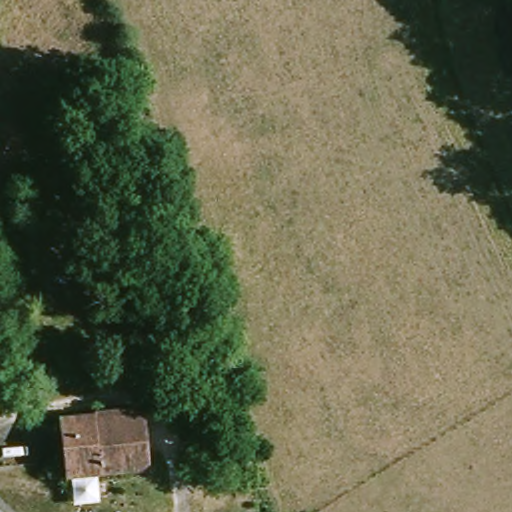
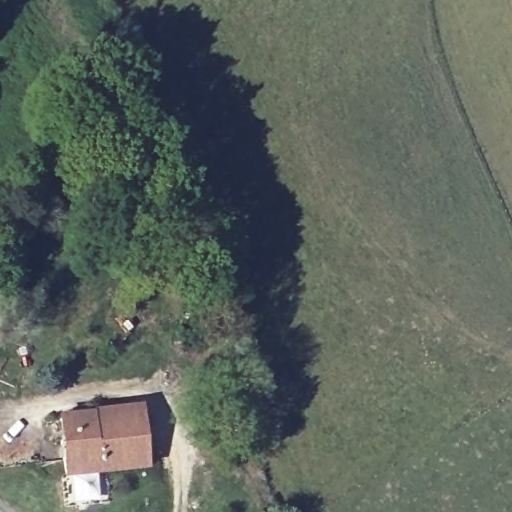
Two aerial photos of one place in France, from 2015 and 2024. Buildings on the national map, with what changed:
unchanged [(61,425),(61,420),(92,417),(92,415),(140,410),(141,417),(146,468),(146,470),(66,478),(61,425)]

